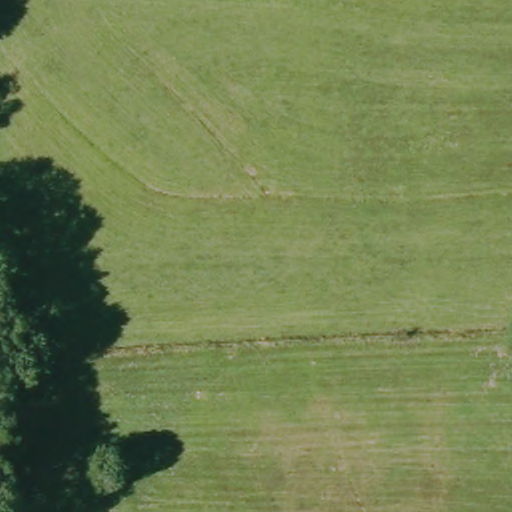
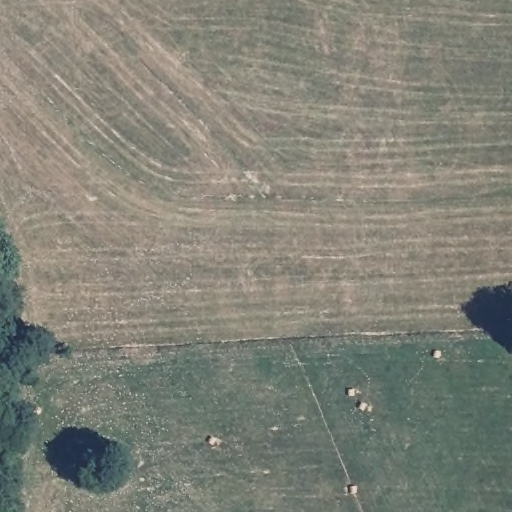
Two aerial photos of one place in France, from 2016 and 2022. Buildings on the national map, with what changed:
[]

